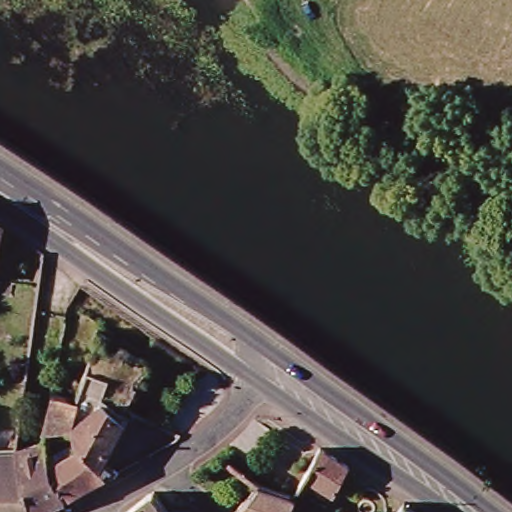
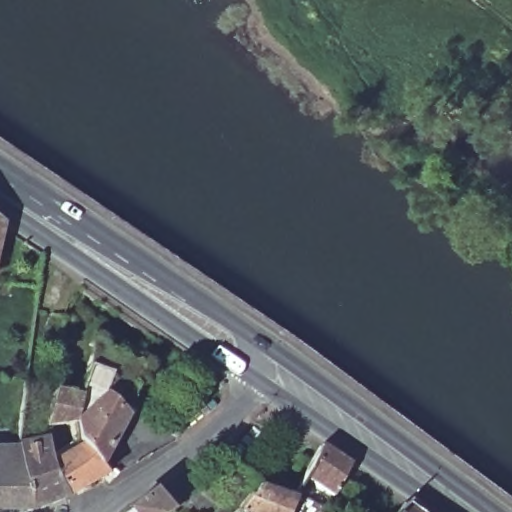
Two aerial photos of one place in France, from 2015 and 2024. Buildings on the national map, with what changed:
unchanged [(2,227),(0,235),(0,226),(2,227)]
unchanged [(86,369),(107,377),(101,394),(79,387),(86,369)]
unchanged [(51,394),(69,398),(74,399),(76,401),(72,422),(43,424),(51,394)]
unchanged [(72,425),(100,400),(121,419),(92,469),(81,446),(71,426),(72,425)]
unchanged [(17,451),(16,446),(42,441),(44,441),(49,461),(50,466),(64,498),(30,512),(26,512),(17,451)]
unchanged [(81,446),(92,469),(98,479),(64,498),(50,466),(49,461),(81,446)]
unchanged [(318,448),(347,467),(333,496),(304,478),(318,448)]
unchanged [(17,451),(26,512),(0,512),(0,452),(17,451)]
unchanged [(260,486),(293,499),(288,512),(236,512),(260,486)]
unchanged [(152,493),(167,512),(128,512),(152,493)]
unchanged [(412,504),(423,512),(406,512),(412,504)]

